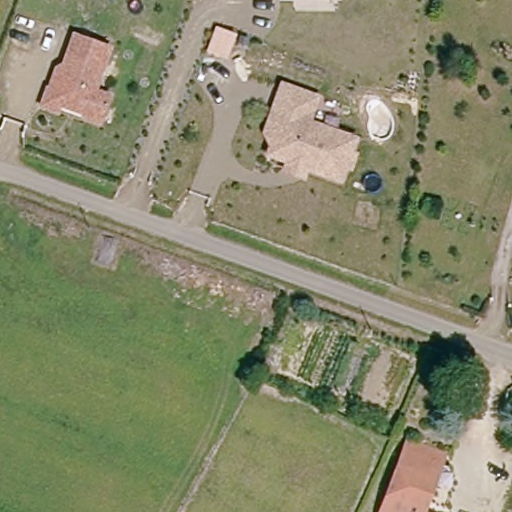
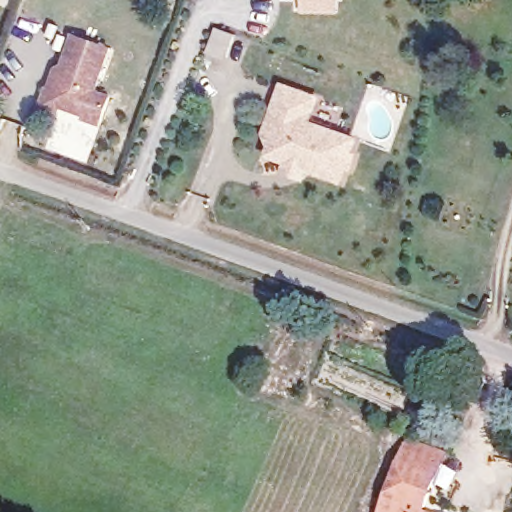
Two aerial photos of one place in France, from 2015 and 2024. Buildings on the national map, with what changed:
unchanged [(38,106),(44,89),(51,91),(73,35),(109,48),(93,91),(108,97),(97,125),(81,119),(82,115),(58,106),(55,113),(38,106)]
unchanged [(300,163),(280,157),(283,148),(277,135),(284,112),(292,87),(328,98),(320,123),(367,138),(362,153),(367,154),(363,167),(358,165),(353,180),(316,179),(297,173),(300,163)]
unchanged [(446,454),(425,512),(382,512),(408,441),(446,454)]

